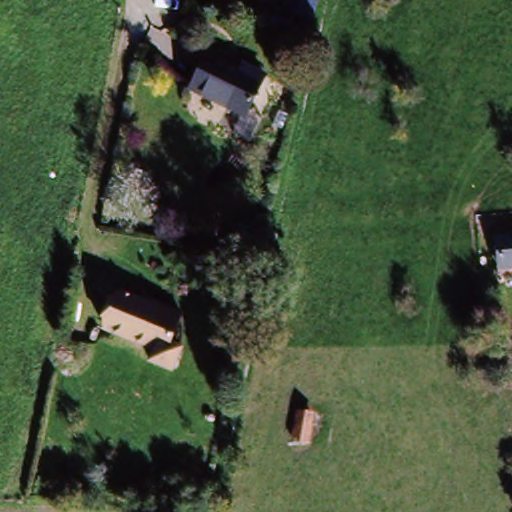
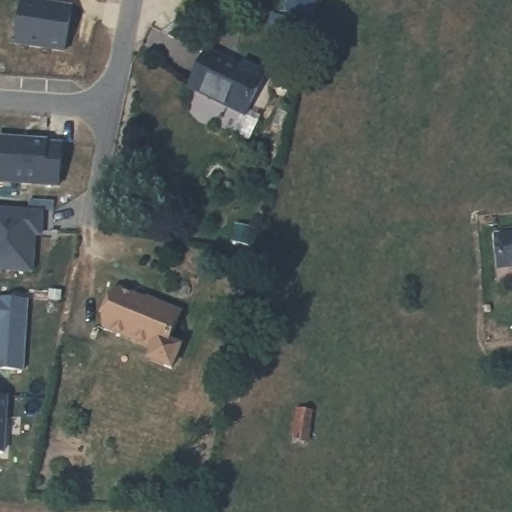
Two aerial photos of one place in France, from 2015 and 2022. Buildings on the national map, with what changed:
new [(70,9),(67,50),(19,47),(22,5),(70,9)]
unchanged [(241,70),(243,67),(265,77),(245,117),(188,89),(205,54),(241,70)]
new [(48,142),(63,142),(60,183),(0,178),(0,136),(48,140),(48,142)]
new [(43,226),(40,226),(37,270),(0,267),(0,205),(45,208),(43,226)]
unchanged [(512,234),(512,267),(496,269),(495,236),(512,234)]
unchanged [(162,311),(165,306),(185,315),(172,345),(181,349),(173,370),(150,361),(155,351),(105,330),(120,293),(162,311)]
new [(0,366),(0,295),(27,297),(22,367),(0,366)]
new [(12,451),(0,450),(0,393),(15,395),(12,451)]
unchanged [(315,412),(310,441),(293,439),(300,409),(315,412)]

